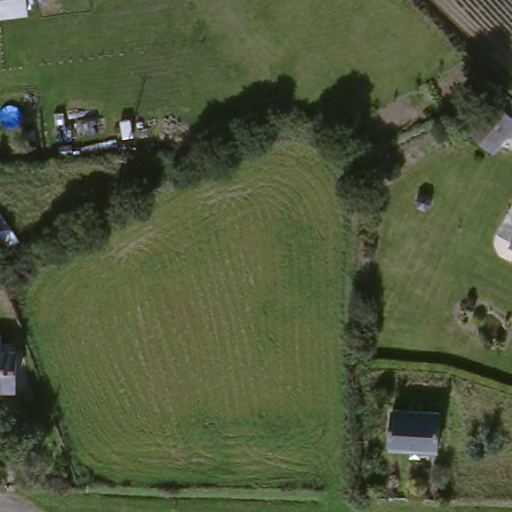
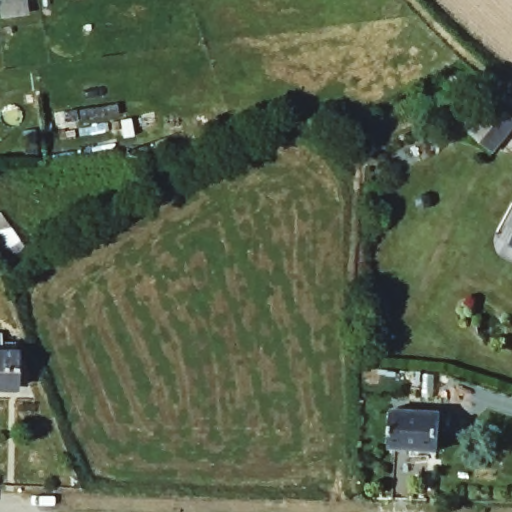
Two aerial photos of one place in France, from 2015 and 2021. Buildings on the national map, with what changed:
unchanged [(510,123),(493,147),(467,123),(485,102),(510,123)]
unchanged [(512,234),(512,241),(509,239),(512,234)]
unchanged [(9,339),(18,368),(14,385),(0,385),(0,339),(9,339)]
unchanged [(423,396),(422,404),(439,405),(436,451),(410,449),(410,444),(387,444),(390,404),(406,404),(407,396),(423,396)]

